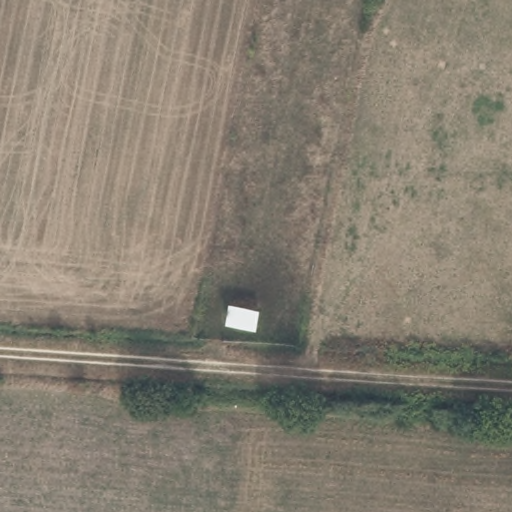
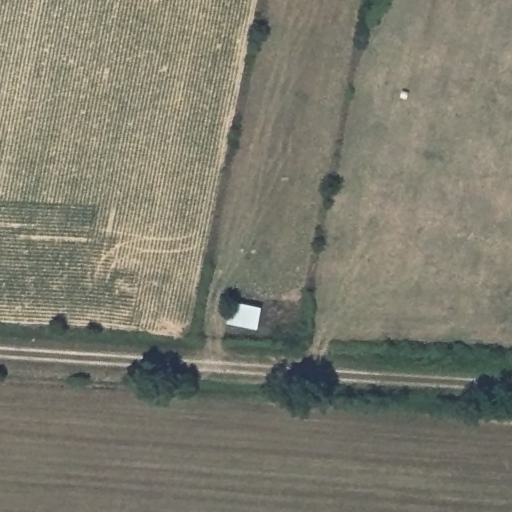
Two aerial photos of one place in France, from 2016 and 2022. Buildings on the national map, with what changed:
unchanged [(232,289),(252,292),(252,307),(261,310),(256,329),(225,322),(232,289)]

